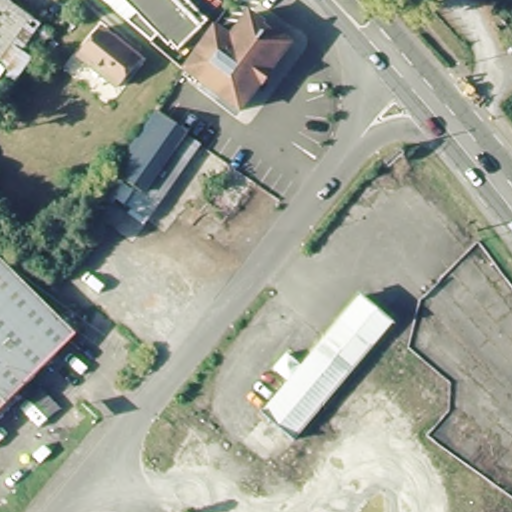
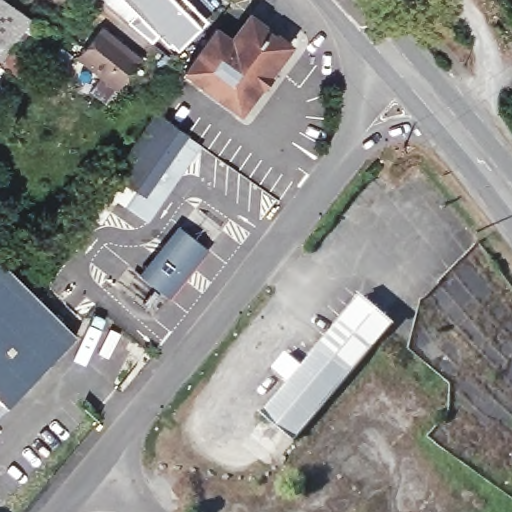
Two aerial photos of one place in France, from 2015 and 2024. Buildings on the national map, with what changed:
unchanged [(204,26),(182,51),(175,44),(172,48),(160,38),(154,45),(101,0),(177,0),(204,26)]
unchanged [(47,38),(11,89),(5,85),(0,93),(0,3),(27,23),(47,38)]
unchanged [(250,15),(289,44),(239,111),(183,69),(216,25),(232,37),(250,15)]
unchanged [(123,84),(119,89),(82,56),(93,43),(105,31),(142,63),(123,84)]
unchanged [(202,151),(160,206),(159,207),(149,223),(120,200),(103,221),(95,215),(91,212),(103,195),(118,176),(161,120),(202,151)]
new [(165,245),(181,225),(208,248),(168,296),(141,273),(157,254),(165,245)]
unchanged [(0,412),(0,260),(76,337),(0,412)]
unchanged [(270,374),(283,359),(298,372),(357,302),(389,328),(310,421),(289,446),(258,419),(285,387),(270,374)]

